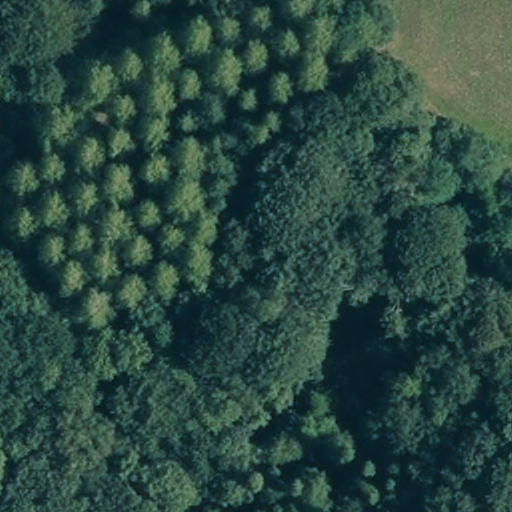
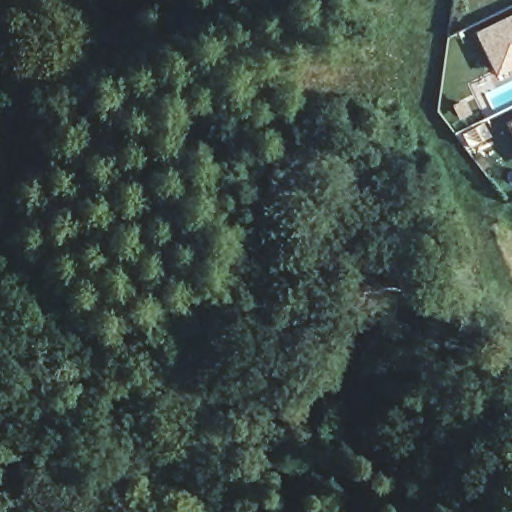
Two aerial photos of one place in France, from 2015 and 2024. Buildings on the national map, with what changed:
new [(474,34),(512,15),(512,69),(496,76),(474,34)]
new [(512,121),(512,132),(507,123),(512,121)]

